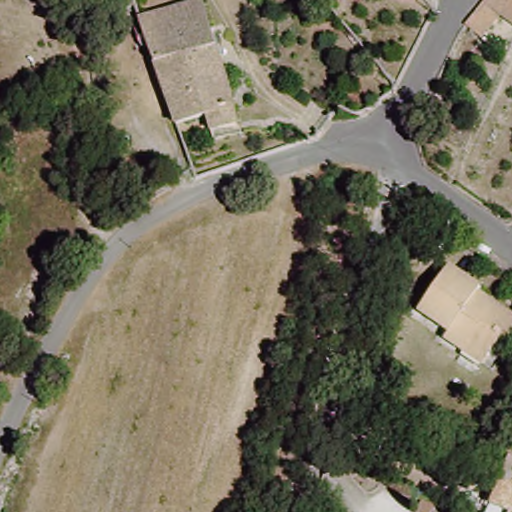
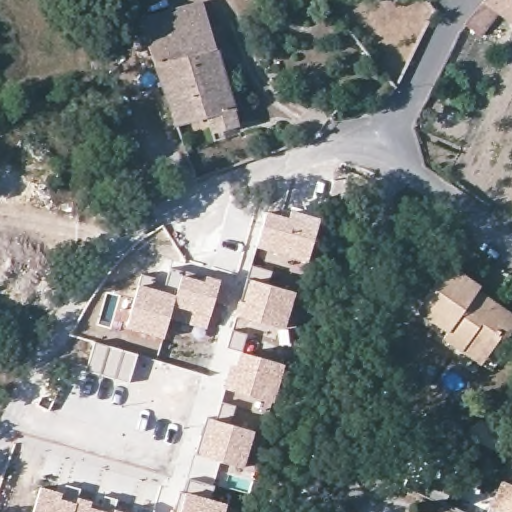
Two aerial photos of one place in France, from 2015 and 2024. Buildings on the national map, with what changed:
unchanged [(132,0),(134,6),(124,10),(120,0),(132,0)]
unchanged [(212,134),(207,115),(176,124),(139,19),(204,0),(235,109),(240,126),(212,134)]
unchanged [(504,11),(486,35),(470,24),(489,0),(512,0),(512,17),(504,11)]
new [(266,210),(287,215),(290,207),(320,217),(307,262),(266,250),(255,247),(266,210)]
new [(252,264),(272,270),(269,281),(296,290),(286,330),(235,314),(248,275),(252,264)]
unchanged [(467,355),(448,343),(452,336),(421,315),(452,270),(469,281),(472,277),(486,286),(480,295),(512,317),(512,341),(510,343),(501,337),(486,359),(482,366),(467,355)]
new [(176,293),(181,273),(204,280),(206,275),(221,280),(206,329),(186,322),(188,312),(173,307),(176,293)]
new [(139,282),(176,293),(173,307),(162,340),(124,328),(139,282)]
new [(226,347),(232,330),(246,334),(241,350),(285,363),(273,405),(221,387),(236,350),(226,347)]
new [(94,341),(138,354),(129,383),(85,370),(94,341)]
new [(206,415),(255,430),(243,468),(220,461),(193,453),(206,415)]
unchanged [(506,479),(512,464),(512,481),(506,479)]
new [(39,485),(92,500),(91,505),(113,511),(112,512),(31,512),(39,485)]
new [(184,488),(211,496),(227,502),(224,512),(174,512),(184,488)]
unchanged [(438,512),(422,512),(426,505),(439,511),(438,512)]
new [(113,511),(114,508),(127,512),(112,512),(113,511)]

